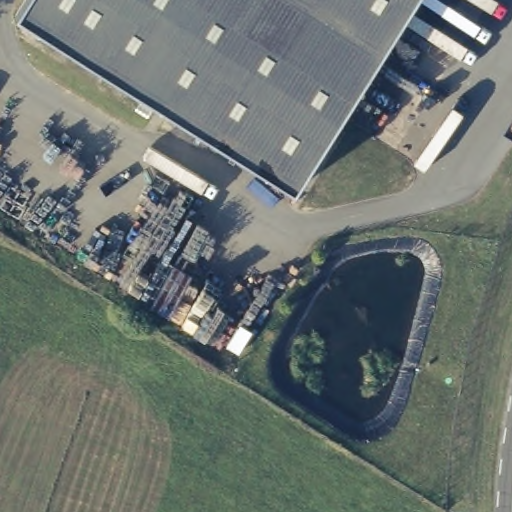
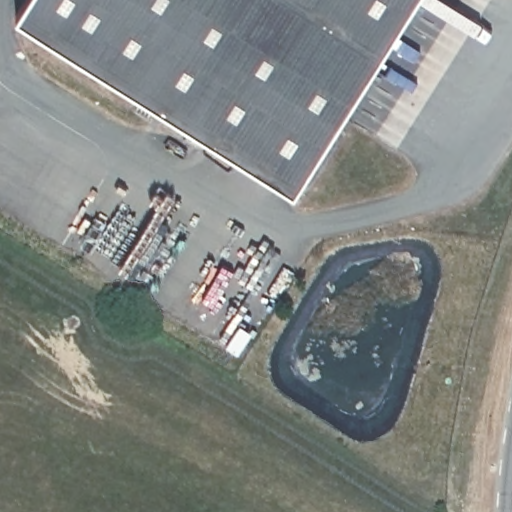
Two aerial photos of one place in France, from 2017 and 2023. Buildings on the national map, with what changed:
unchanged [(22,0),(411,0),(294,185),(16,11),(22,0)]

